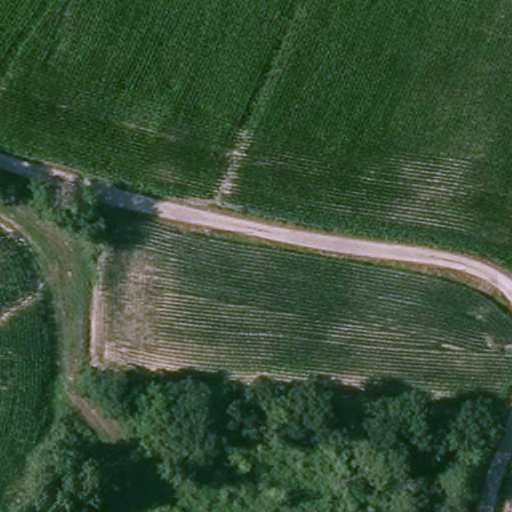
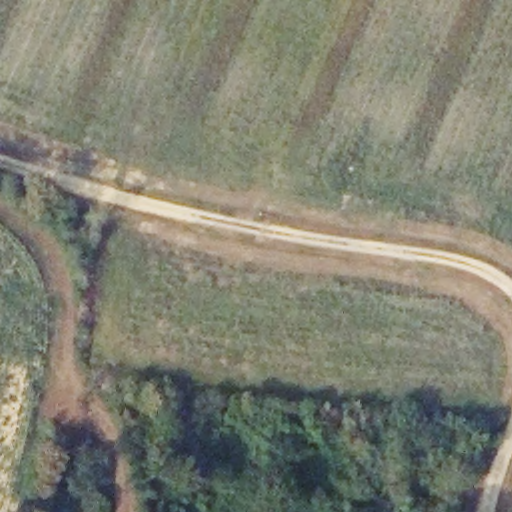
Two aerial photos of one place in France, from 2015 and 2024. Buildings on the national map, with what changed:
[]

